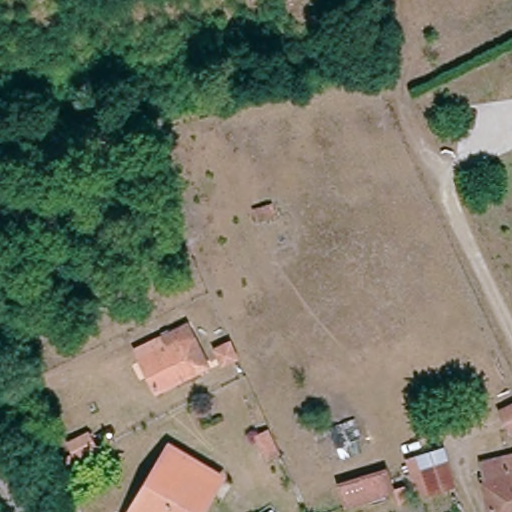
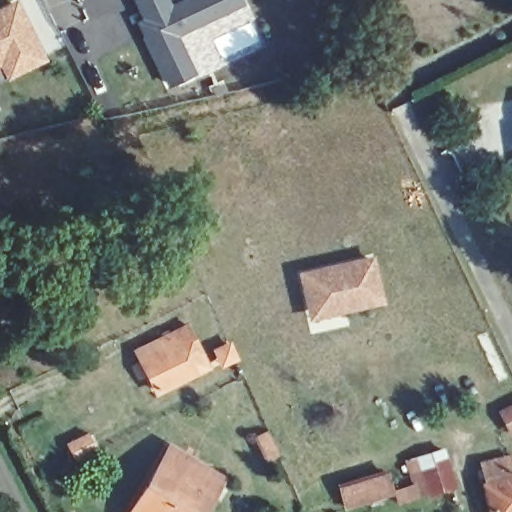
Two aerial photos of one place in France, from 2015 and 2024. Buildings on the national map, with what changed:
new [(178,0),(242,0),(245,5),(180,36),(198,73),(169,86),(136,21),(142,18),(133,0),(170,0),(172,3),(178,0)]
new [(42,60),(9,76),(1,62),(0,63),(0,13),(15,6),(42,60)]
new [(308,297),(303,277),(372,261),(382,303),(320,317),(313,319),(308,297)]
unchanged [(187,326),(208,370),(157,394),(136,350),(187,326)]
unchanged [(504,430),(496,413),(512,405),(512,426),(504,430)]
unchanged [(170,453),(221,484),(211,502),(205,512),(135,512),(170,453)]
unchanged [(444,463),(448,462),(455,487),(430,495),(429,493),(418,497),(408,464),(441,454),(444,463)]
unchanged [(487,488),(490,488),(486,470),(512,463),(512,512),(493,512),(487,488)]
unchanged [(386,473),(393,495),(346,510),(339,488),(386,473)]

